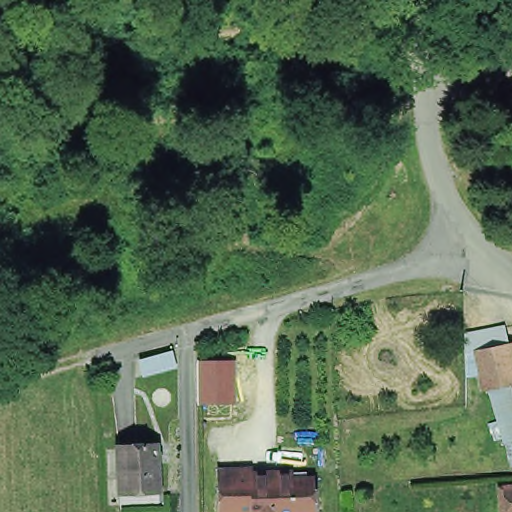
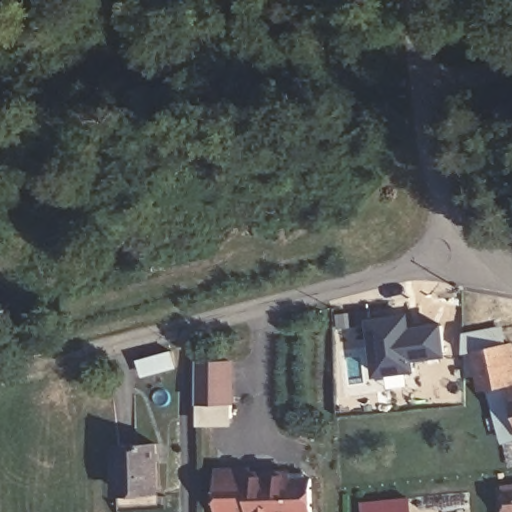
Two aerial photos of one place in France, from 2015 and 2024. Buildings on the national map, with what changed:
new [(416,360),(418,372),(375,376),(368,319),(411,313),(413,326),(444,323),(449,356),(416,360)]
unchanged [(509,383),(506,383),(485,388),(479,390),(471,349),(462,350),(462,334),(497,327),(500,344),(501,343),(509,383)]
unchanged [(199,404),(198,362),(234,361),(235,405),(199,404)]
unchanged [(501,443),(485,388),(506,383),(510,397),(512,404),(512,440),(501,443)]
unchanged [(512,396),(512,404),(510,397),(512,396)]
unchanged [(120,506),(119,492),(117,447),(155,445),(157,490),(158,504),(120,506)]
unchanged [(221,510),(219,477),(252,476),(252,480),(275,479),(292,478),(292,485),(312,485),(313,512),(221,512),(221,510)]
unchanged [(512,485),(512,512),(502,512),(499,486),(512,485)]
new [(414,496),(415,512),(365,512),(364,501),(414,496)]

